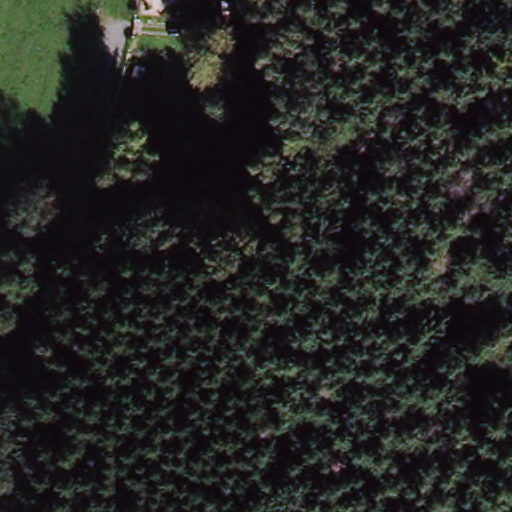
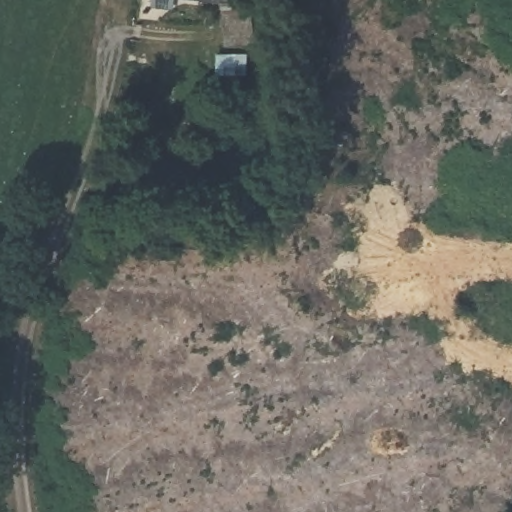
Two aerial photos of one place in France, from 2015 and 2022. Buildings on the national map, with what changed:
unchanged [(242,2),(240,20),(222,16),(225,1),(242,2)]
unchanged [(238,58),(237,81),(225,78),(227,56),(238,58)]

